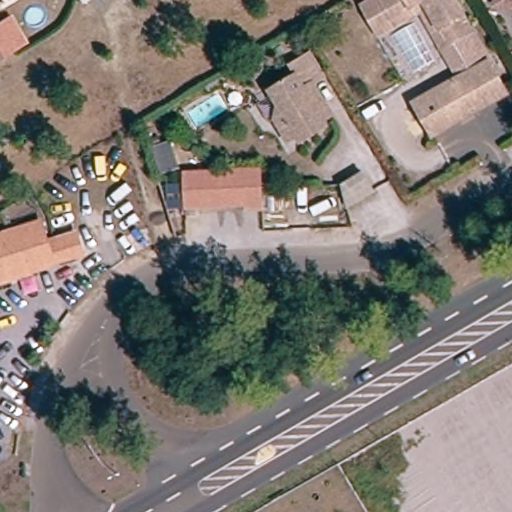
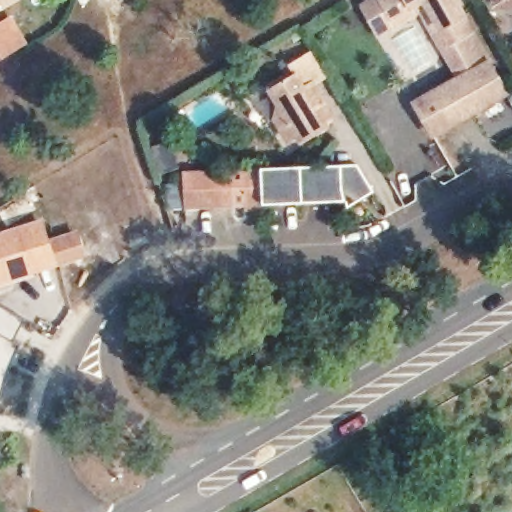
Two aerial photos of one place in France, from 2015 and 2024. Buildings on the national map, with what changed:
unchanged [(461,34),(437,47),(414,5),(379,24),(366,0),(442,0),(461,34)]
unchanged [(502,13),(504,0),(512,0),(512,14),(502,13)]
unchanged [(495,94),(422,134),(403,100),(476,61),(495,94)]
unchanged [(298,72),(307,86),(315,81),(333,111),(324,116),(328,122),(303,137),(299,131),(290,137),(278,116),(282,102),(273,87),(298,72)]
new [(340,164),(358,164),(374,191),(350,207),(346,200),(265,202),(262,170),(340,164)]
unchanged [(185,173),(247,168),(262,167),(265,202),(249,203),(188,208),(185,173)]
demolished [(396,193),(369,209),(364,186),(384,174),(396,193)]
unchanged [(0,233),(41,220),(46,240),(79,232),(81,243),(75,258),(28,272),(29,278),(0,286),(0,233)]
new [(16,344),(1,384),(0,392),(0,307),(24,320),(16,344)]

